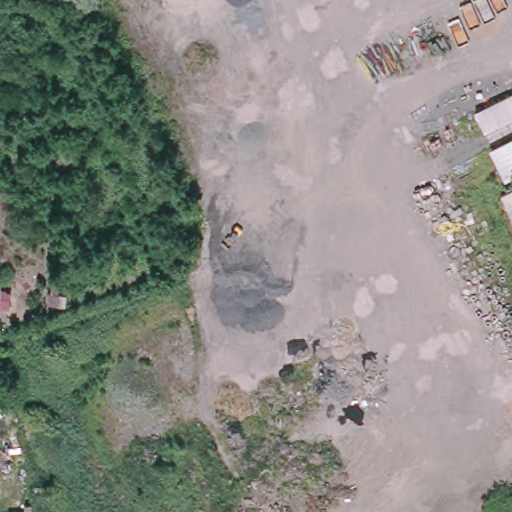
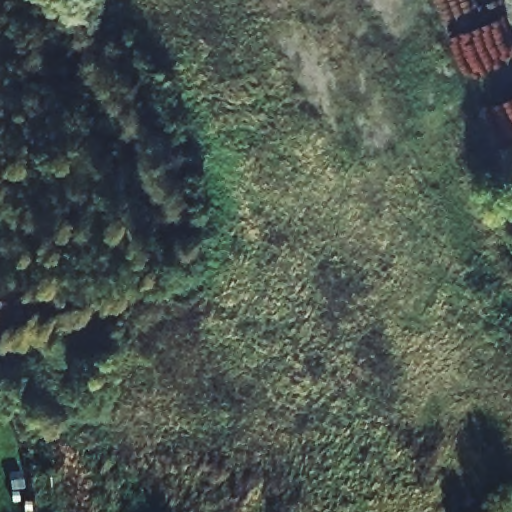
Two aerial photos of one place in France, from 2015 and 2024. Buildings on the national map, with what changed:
unchanged [(512,231),(500,195),(512,190),(512,231)]

